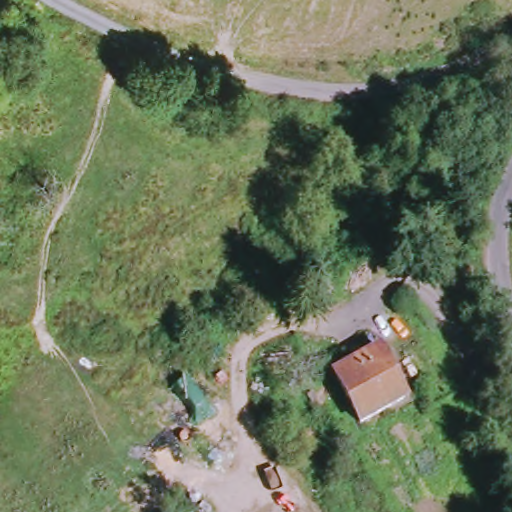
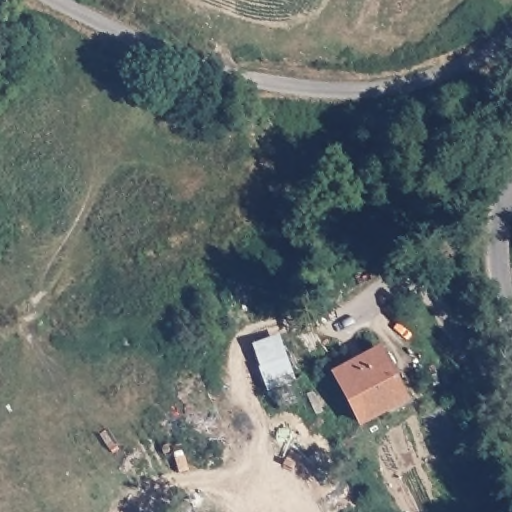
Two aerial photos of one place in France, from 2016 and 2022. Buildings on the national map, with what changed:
unchanged [(380,352),(406,402),(360,426),(335,375),(380,352)]

